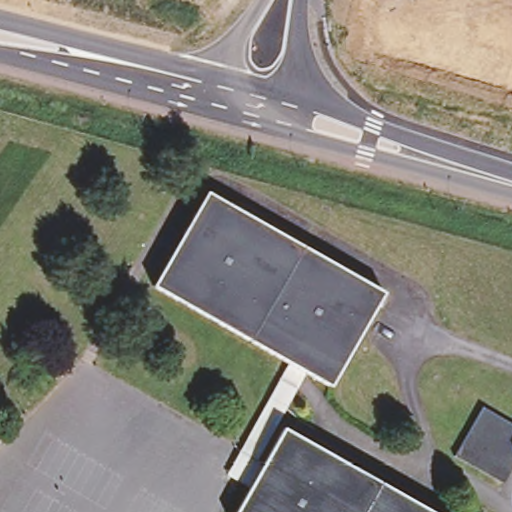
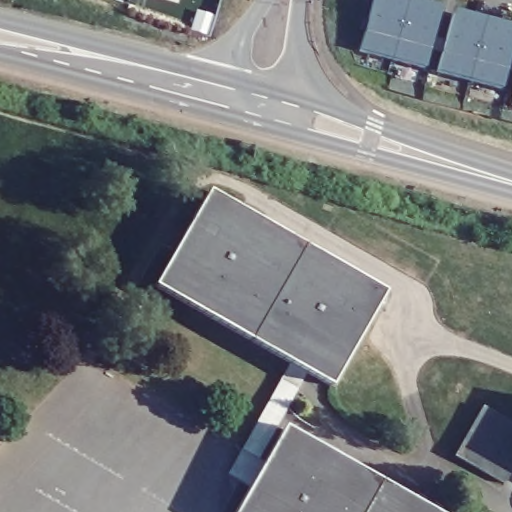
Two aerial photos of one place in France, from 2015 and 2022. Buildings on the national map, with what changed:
new [(507,69),(502,87),(437,70),(442,52),(429,49),(424,67),(359,50),(373,0),(416,0),(441,6),(433,35),(446,39),(454,10),(512,25),(512,51),(510,59),(512,59),(512,70),(507,69)]
unchanged [(326,378),(156,281),(205,188),(377,284),(326,378)]
unchanged [(498,474),(448,448),(477,400),(512,419),(512,447),(498,474)]
unchanged [(284,421),(445,512),(232,512),(284,421)]

